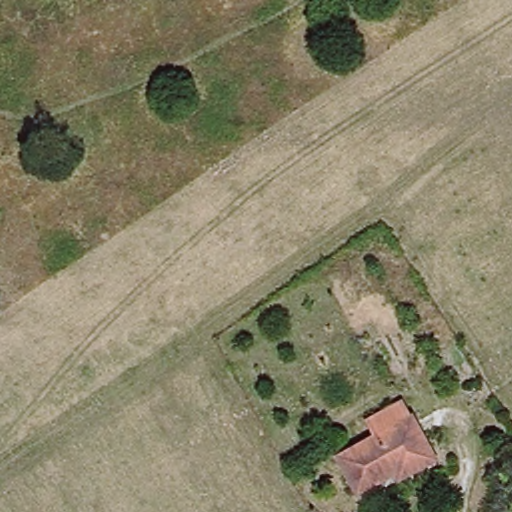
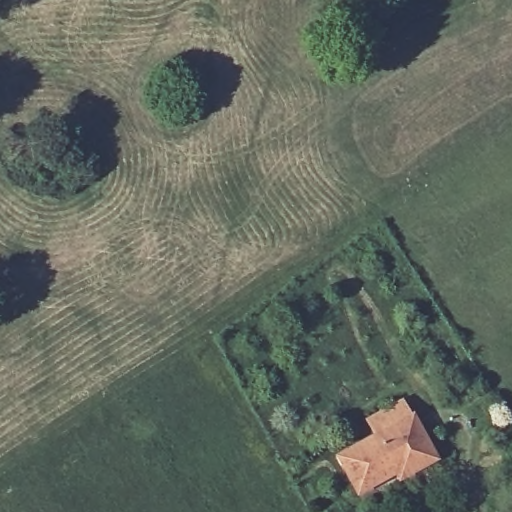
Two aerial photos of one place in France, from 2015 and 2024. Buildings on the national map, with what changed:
unchanged [(373,443),(366,430),(400,411),(408,426),(412,423),(436,467),(399,489),(394,482),(357,503),(335,463),(373,443)]

